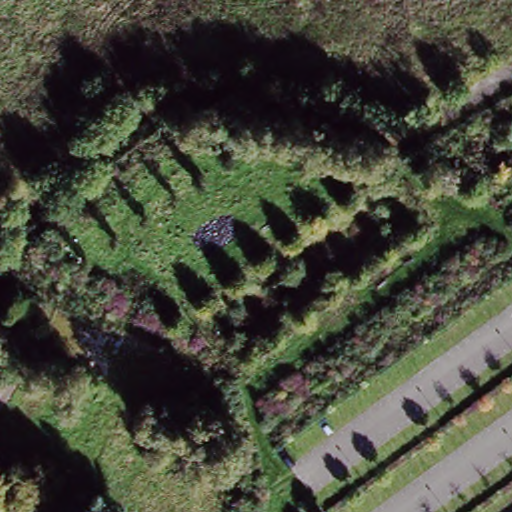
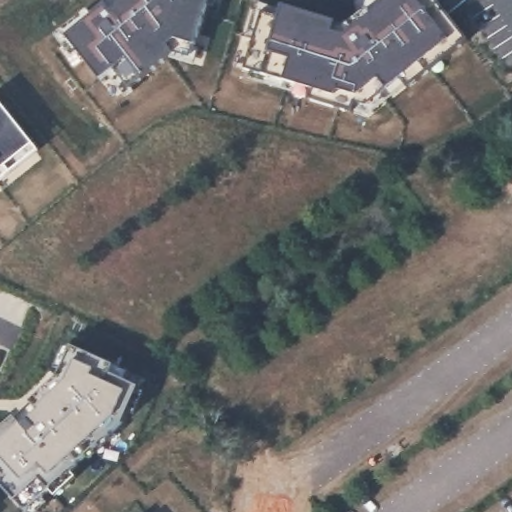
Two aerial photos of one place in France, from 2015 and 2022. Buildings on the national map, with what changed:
new [(171,53),(145,74),(128,87),(115,68),(100,79),(66,37),(111,2),(114,6),(118,4),(119,0),(209,0),(195,45),(191,57),(171,53)]
new [(407,85),(400,77),(386,88),(365,106),(352,102),(350,110),(310,98),(313,87),(285,80),(240,69),(260,11),(281,15),(282,9),(334,23),(331,32),(345,36),(390,0),(434,0),(465,40),(407,85)]
new [(0,169),(0,102),(31,145),(0,169)]
demolished [(147,377),(143,387),(115,375),(128,344),(156,356),(147,377)]
new [(38,410),(31,401),(60,375),(73,348),(113,364),(108,374),(138,388),(122,422),(70,470),(76,477),(55,496),(49,489),(25,511),(15,500),(0,483),(0,430),(14,418),(21,424),(22,426),(40,412),(38,410)]
demolished [(4,365),(0,373),(0,363),(4,365)]
demolished [(10,470),(0,479),(0,459),(10,470)]

